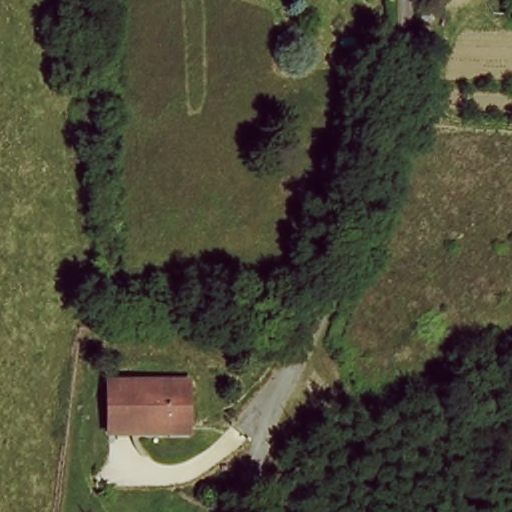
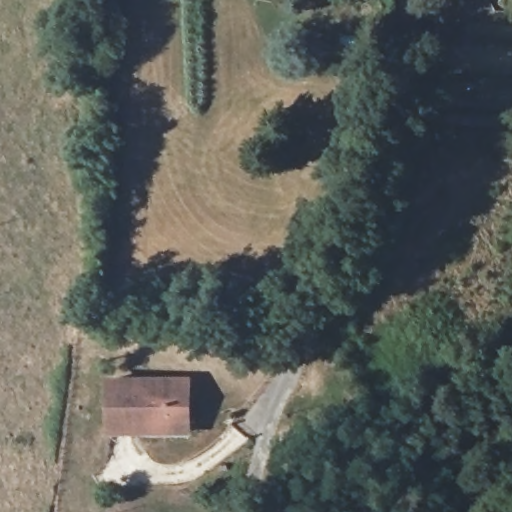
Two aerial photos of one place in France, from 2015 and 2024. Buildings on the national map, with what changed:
unchanged [(140,432),(109,432),(109,386),(109,381),(188,382),(188,397),(189,423),(189,433),(140,432)]

